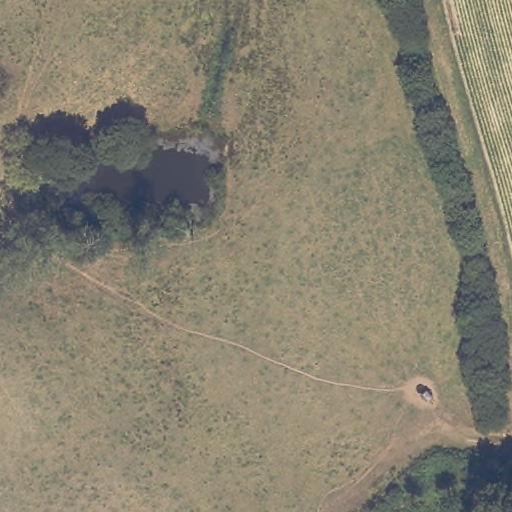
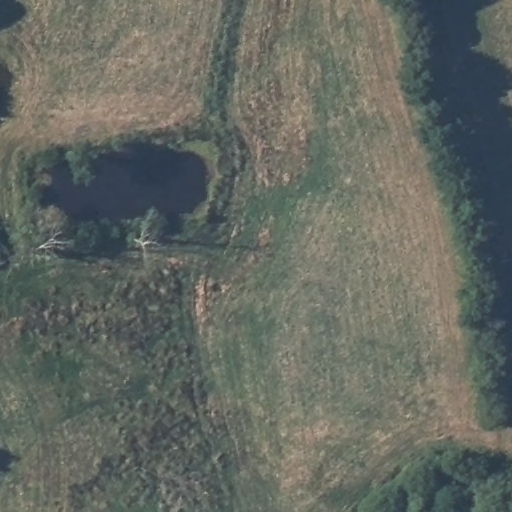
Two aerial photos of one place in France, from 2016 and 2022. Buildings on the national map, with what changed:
[]

